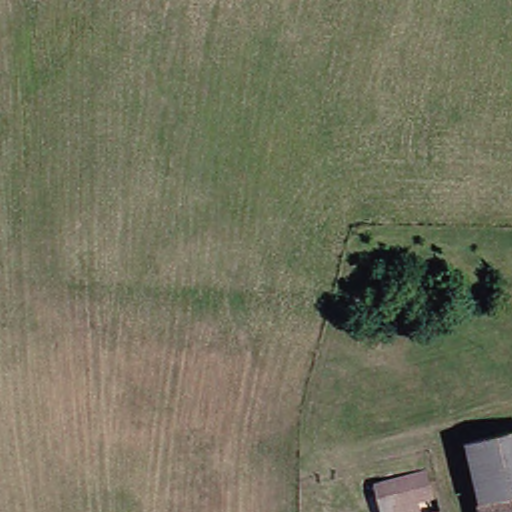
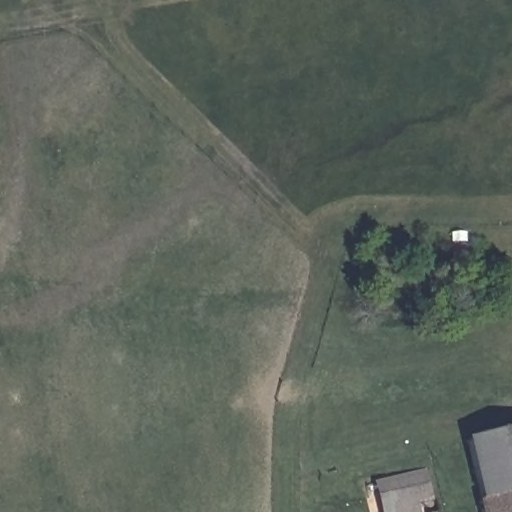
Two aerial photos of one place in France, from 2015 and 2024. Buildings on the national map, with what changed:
unchanged [(466,466),(459,440),(512,429),(512,457),(466,466)]
unchanged [(470,499),(466,466),(512,457),(512,489),(470,499)]
unchanged [(377,512),(370,483),(416,472),(419,481),(424,501),(416,503),(379,512),(377,512)]
unchanged [(474,512),(470,499),(512,489),(512,512),(474,512)]

